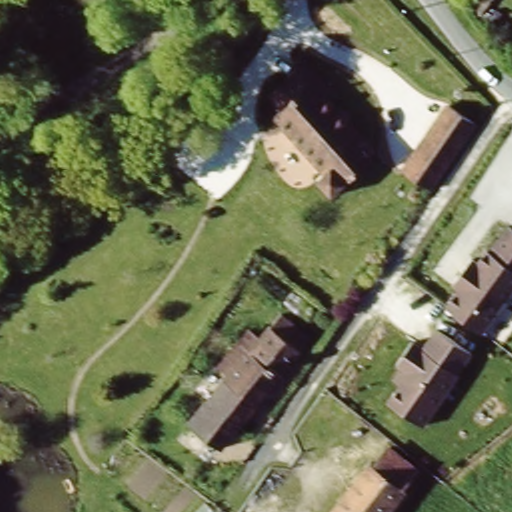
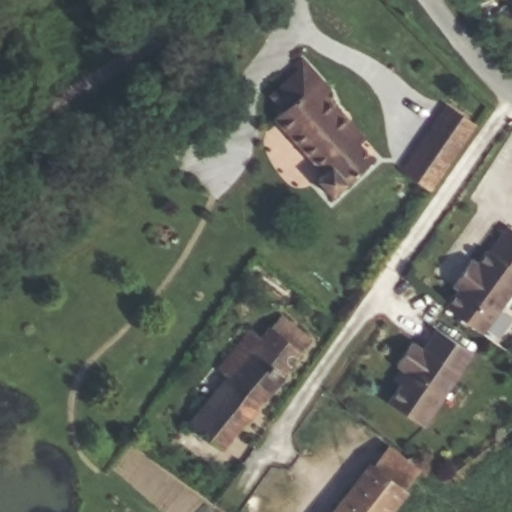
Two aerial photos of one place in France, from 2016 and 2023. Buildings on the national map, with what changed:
unchanged [(323,88),(315,100),(360,139),(354,146),(365,159),(330,194),(316,180),(321,175),(270,118),(281,112),(266,96),(296,70),(293,67),(303,60),(323,88)]
unchanged [(470,127),(430,187),(403,169),(442,109),(470,127)]
unchanged [(512,230),(512,291),(483,331),(445,304),(457,288),(452,285),(472,257),(477,261),(486,249),(488,251),(506,226),(512,230)]
unchanged [(192,445),(181,436),(196,416),(212,395),(213,394),(228,374),(220,368),(228,357),(235,348),(230,344),(241,329),(242,327),(252,335),(256,337),(262,330),(266,324),(299,349),(274,382),(243,423),(210,466),(188,450),(192,445)]
unchanged [(425,425),(387,401),(406,373),(395,365),(413,340),(423,346),(437,327),(473,352),(459,373),(460,374),(425,425)]
unchanged [(424,470),(405,488),(414,497),(401,512),(330,512),(372,463),(389,442),(424,470)]

